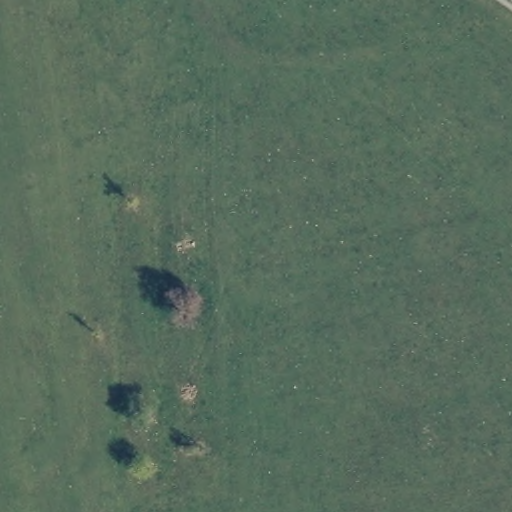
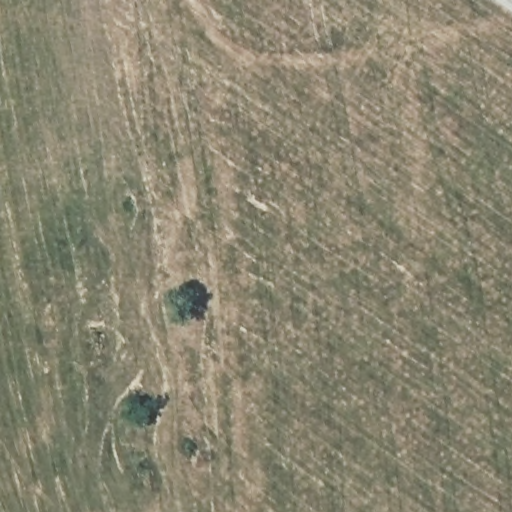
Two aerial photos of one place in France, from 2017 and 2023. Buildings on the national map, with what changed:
[]

